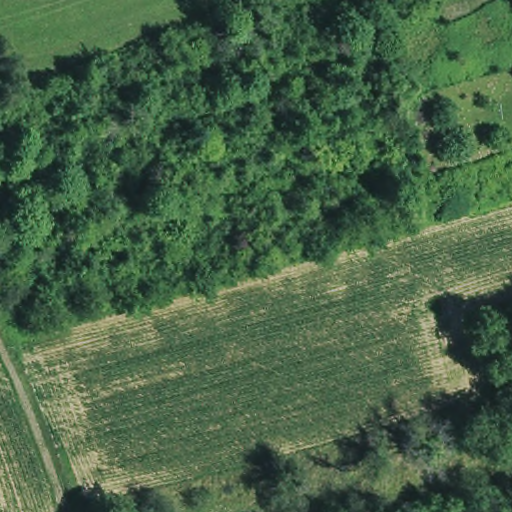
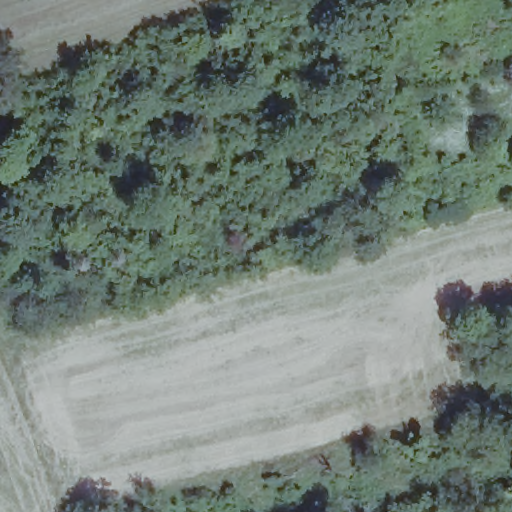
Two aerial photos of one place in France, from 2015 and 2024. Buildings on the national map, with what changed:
[]

